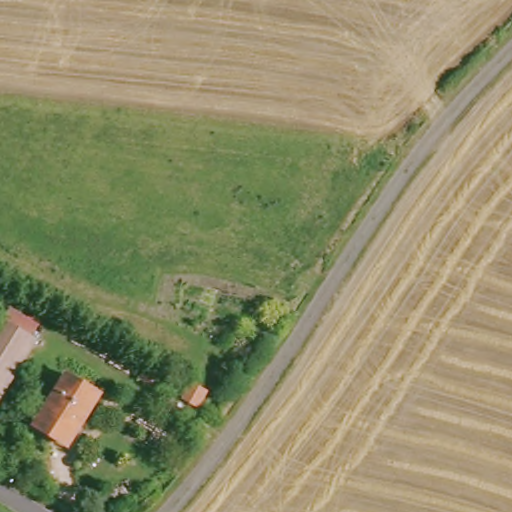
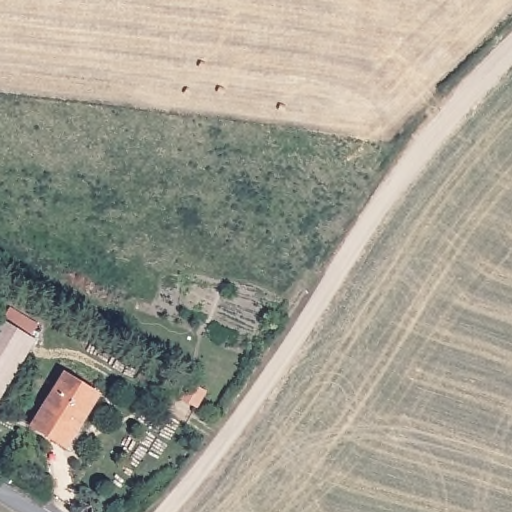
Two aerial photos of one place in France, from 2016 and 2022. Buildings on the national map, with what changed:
unchanged [(40,335),(0,398),(0,323),(5,313),(40,335)]
unchanged [(34,424),(66,374),(98,394),(66,444),(34,424)]
unchanged [(210,397),(201,408),(188,400),(195,387),(210,397)]

